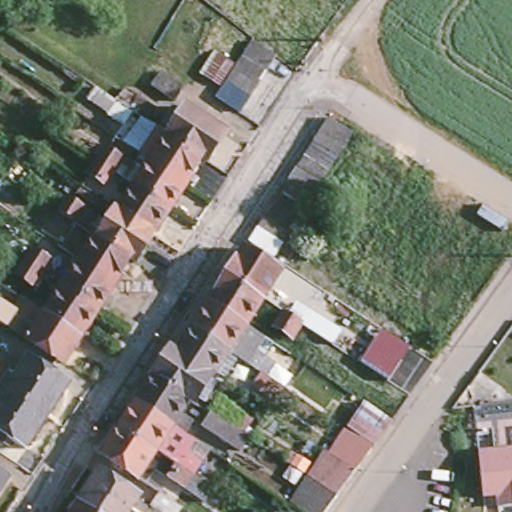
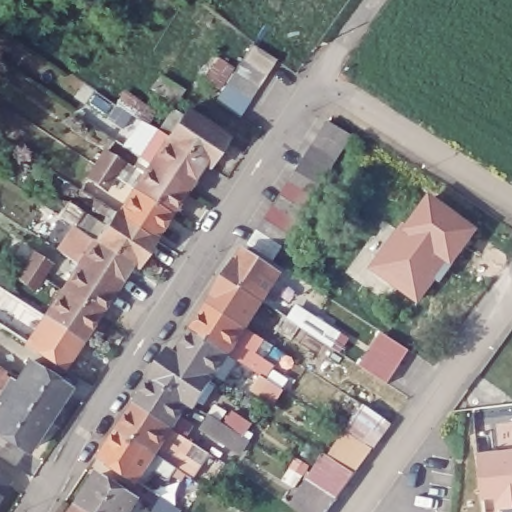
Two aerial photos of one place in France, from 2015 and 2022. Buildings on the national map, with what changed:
unchanged [(229,88),(238,74),(246,60),(256,45),(278,61),(269,75),(259,89),(251,102),(242,116),(221,102),(229,88)]
unchanged [(238,67),(223,89),(211,81),(206,77),(220,56),(225,59),(238,67)]
unchanged [(150,90),(160,76),(183,92),(173,106),(150,90)]
unchanged [(106,118),(106,117),(85,102),(93,91),(114,106),(116,107),(125,94),(138,102),(138,100),(154,111),(146,125),(129,114),(128,116),(120,128),(106,118)]
unchanged [(72,261),(55,250),(65,238),(49,227),(57,216),(67,202),(82,212),(102,227),(109,217),(104,213),(108,209),(110,211),(116,204),(120,207),(131,192),(110,177),(103,188),(87,177),(94,166),(104,152),(119,163),(131,170),(139,157),(156,132),(158,133),(171,112),(179,118),(183,112),(223,138),(205,166),(201,164),(201,165),(186,187),(166,217),(151,240),(134,265),(133,267),(129,265),(113,289),(96,314),(61,291),(74,270),(69,266),(72,261)]
unchanged [(266,253),(265,255),(243,241),(251,228),(259,216),(268,203),(276,191),(284,177),(291,167),(300,153),(308,141),(316,130),(324,116),(345,130),(336,143),(329,156),(321,168),(313,181),(306,192),(298,205),(289,218),(281,230),(323,259),(309,281),(266,253)]
unchanged [(113,141),(108,149),(98,142),(103,134),(113,141)]
new [(479,229),(452,266),(449,264),(440,281),(436,278),(419,304),(394,285),(389,301),(346,271),(384,219),(400,224),(403,221),(409,221),(429,194),(479,229)]
unchanged [(223,272),(241,243),(276,267),(258,296),(223,272)]
unchanged [(16,279),(23,267),(33,253),(49,264),(40,278),(32,290),(16,279)]
unchanged [(240,323),(205,300),(223,272),(258,296),(240,323)]
unchanged [(5,331),(0,328),(0,307),(11,314),(20,300),(44,316),(61,291),(96,314),(80,340),(63,366),(26,343),(26,344),(5,331)]
unchanged [(235,376),(243,363),(223,348),(189,324),(205,300),(240,323),(261,337),(251,350),(268,363),(260,375),(251,388),(235,376)]
unchanged [(298,328),(289,341),(273,331),(281,317),(291,303),(308,315),(339,336),(329,349),(299,329),(298,328)]
unchanged [(208,372),(173,349),(189,324),(223,348),(209,370),(208,372)]
unchanged [(361,363),(382,332),(409,350),(388,381),(361,363)]
unchanged [(198,398),(193,395),(189,401),(148,373),(165,347),(172,351),(173,349),(208,372),(204,377),(209,381),(198,398)]
unchanged [(0,406),(0,405),(0,369),(4,371),(1,375),(14,383),(28,363),(40,370),(49,376),(66,387),(44,421),(24,452),(6,440),(0,436),(0,406)]
unchanged [(186,490),(178,485),(163,475),(158,472),(151,482),(134,471),(131,476),(96,452),(115,424),(131,398),(148,373),(189,401),(188,403),(183,399),(176,409),(189,418),(180,431),(188,436),(203,447),(194,461),(188,471),(195,476),(201,480),(192,494),(186,490)]
unchanged [(373,450),(370,448),(344,431),(331,423),(346,395),(361,405),(389,423),(391,425),(373,450)]
unchanged [(211,435),(196,424),(204,411),(221,422),(229,409),(247,421),(242,429),(246,431),(242,437),(233,449),(211,435)]
unchanged [(352,472),(327,457),(341,434),(369,450),(352,472)]
unchanged [(497,506),(496,495),(482,496),(477,453),(512,449),(512,505),(497,506)]
unchanged [(283,464),(289,456),(309,470),(304,478),(283,464)]
unchanged [(324,456),(350,476),(333,500),(325,512),(297,512),(289,507),(306,482),(324,456)]
unchanged [(97,472),(116,484),(118,480),(127,485),(124,489),(136,497),(126,512),(71,512),(78,501),(97,472)]
unchanged [(0,490),(0,479),(5,482),(0,490)]
unchanged [(156,512),(146,504),(153,491),(173,506),(169,512),(156,512)]

